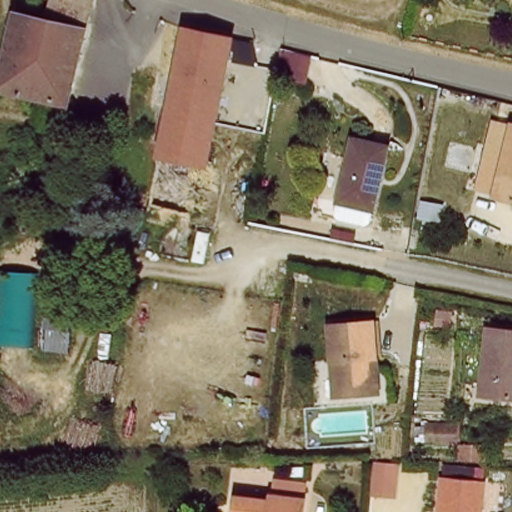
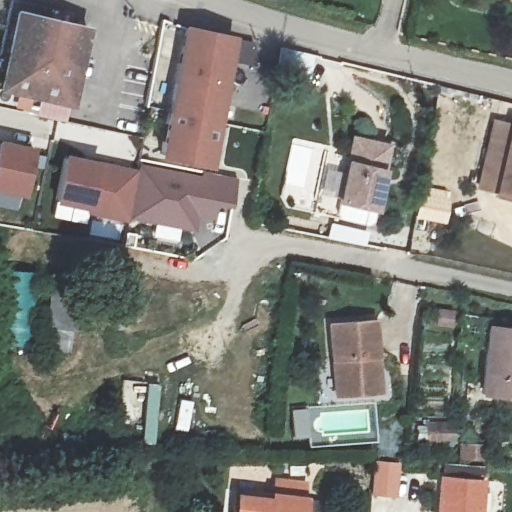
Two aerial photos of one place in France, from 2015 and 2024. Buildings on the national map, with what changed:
unchanged [(36,102),(0,94),(0,68),(14,10),(91,27),(72,110),(66,108),(65,122),(35,116),(36,102)]
unchanged [(162,155),(188,27),(236,37),(213,162),(206,162),(162,155)]
new [(285,49),(313,55),(308,83),(279,77),(285,49)]
unchanged [(504,191),(485,187),(501,122),(512,125),(512,153),(504,191)]
unchanged [(390,145),(376,207),(341,200),(355,137),(390,145)]
new [(25,199),(0,193),(0,142),(35,148),(25,199)]
unchanged [(502,197),(504,191),(512,153),(512,199),(502,197)]
new [(98,162),(118,166),(108,220),(85,215),(85,210),(53,204),(62,155),(98,162)]
demolished [(195,212),(152,205),(162,155),(206,162),(195,212)]
new [(118,166),(139,170),(141,161),(200,175),(201,171),(237,179),(231,210),(216,208),(213,220),(198,217),(195,231),(129,219),(128,224),(108,220),(118,166)]
new [(50,355),(44,275),(66,274),(72,352),(50,355)]
unchanged [(336,365),(333,328),(377,325),(383,397),(343,400),(338,401),(336,365)]
unchanged [(512,333),(512,405),(473,398),(481,330),(512,333)]
unchanged [(464,421),(465,439),(428,442),(428,425),(464,421)]
unchanged [(379,501),(378,467),(402,467),(402,503),(379,501)]
unchanged [(484,478),(481,512),(434,512),(438,472),(484,478)]
unchanged [(273,497),(274,492),(310,497),(308,512),(235,512),(236,492),(273,497)]

